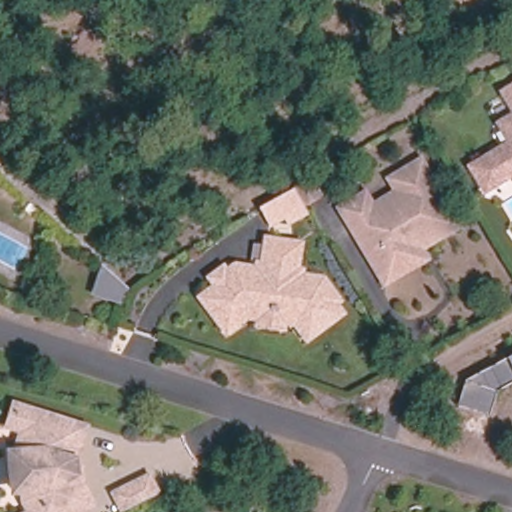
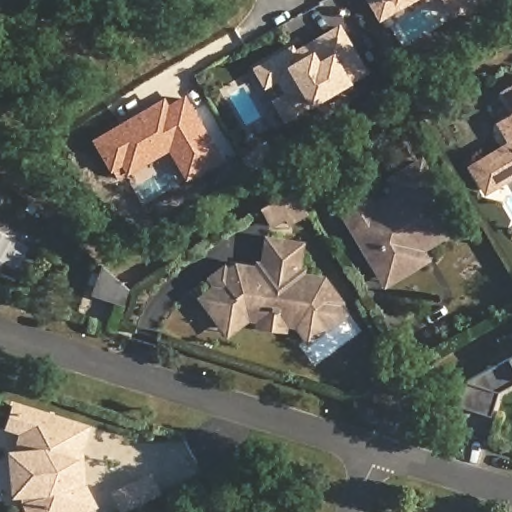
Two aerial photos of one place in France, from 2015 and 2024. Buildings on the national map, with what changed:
new [(381,21),(369,0),(416,0),(381,21)]
new [(443,4),(441,0),(450,0),(443,4)]
new [(264,80),(254,64),(290,42),(293,48),(305,40),(318,32),(337,21),(363,65),(309,97),(283,113),(264,80)]
unchanged [(512,90),(512,108),(504,94),(512,90)]
new [(222,159),(186,180),(168,152),(115,183),(90,140),(162,98),(165,102),(184,94),(222,159)]
unchanged [(508,123),(512,121),(512,142),(505,131),(508,123)]
new [(242,155),(240,151),(266,136),(275,150),(263,157),(249,166),(242,155)]
unchanged [(472,169),(512,145),(512,177),(486,192),(472,169)]
unchanged [(378,279),(337,210),(361,196),(368,209),(395,193),(387,181),(417,163),(452,222),(455,227),(423,246),(415,251),(418,255),(421,260),(381,284),(378,279)]
unchanged [(309,180),(320,197),(315,200),(302,207),(292,190),(305,182),(309,180)]
unchanged [(281,218),(266,226),(256,209),(290,189),(300,207),(303,211),(305,213),(285,224),(281,218)]
unchanged [(285,324),(285,331),(258,327),(260,320),(249,318),(227,334),(225,330),(201,299),(217,287),(212,281),(213,278),(222,271),(225,272),(226,274),(236,267),(258,271),(264,266),(266,249),(270,246),(297,250),(300,254),(297,272),(301,277),(324,281),(330,290),(340,302),(336,305),(343,315),(312,338),(308,341),(297,326),(285,324)]
unchanged [(95,284),(102,260),(130,285),(125,299),(95,284)]
unchanged [(490,414),(458,403),(467,378),(512,354),(512,382),(499,389),(490,414)]
unchanged [(22,493),(21,483),(11,483),(9,446),(20,446),(19,435),(23,421),(10,418),(16,400),(81,421),(75,440),(76,478),(86,496),(57,512),(18,512),(17,511),(29,506),(22,493)]
unchanged [(160,494),(126,510),(117,492),(150,476),(160,494)]

